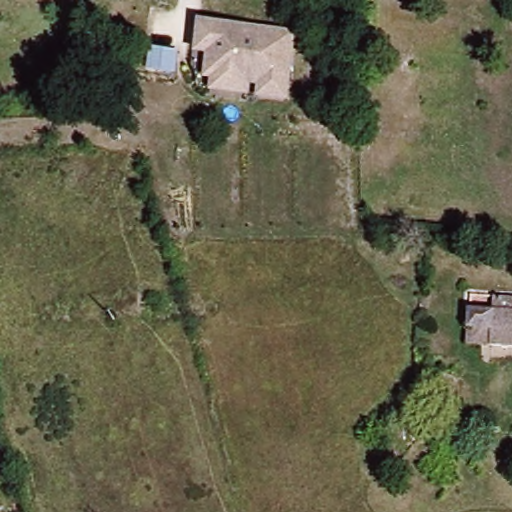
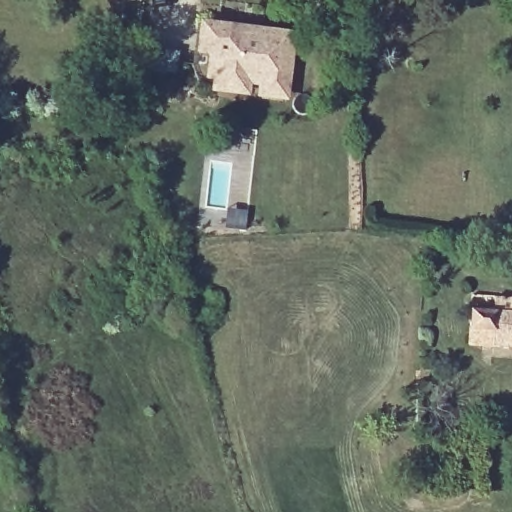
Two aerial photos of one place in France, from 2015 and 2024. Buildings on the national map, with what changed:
unchanged [(285,103),(210,91),(213,79),(203,79),(206,55),(194,54),(198,15),(206,17),(202,42),(215,44),(212,60),(219,69),(265,75),(262,86),(287,90),(285,103)]
unchanged [(287,90),(262,86),(265,75),(219,69),(212,60),(215,44),(202,42),(206,17),(295,30),(287,90)]
unchanged [(511,346),(491,345),(466,344),(467,327),(468,306),(493,309),(495,299),(512,301),(512,347),(511,346)]

